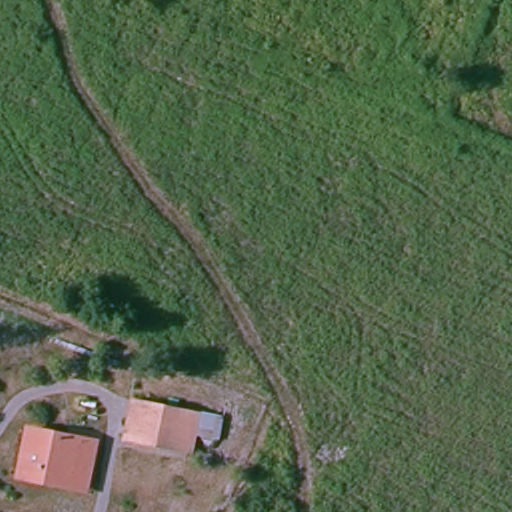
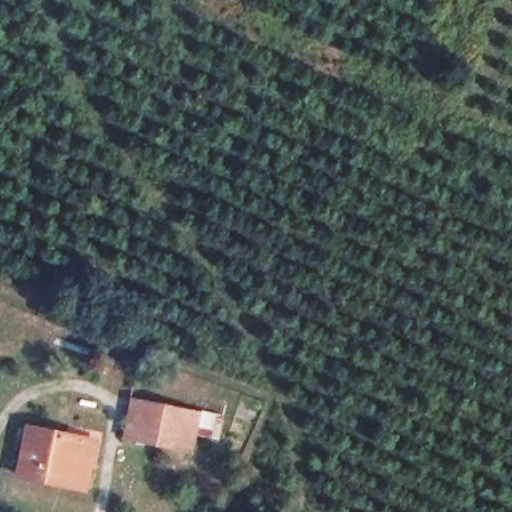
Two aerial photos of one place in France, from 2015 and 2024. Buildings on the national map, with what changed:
unchanged [(127,444),(137,403),(193,416),(219,421),(215,442),(189,437),(185,457),(127,444)]
unchanged [(15,479),(16,471),(26,426),(96,442),(91,464),(85,495),(15,479)]

